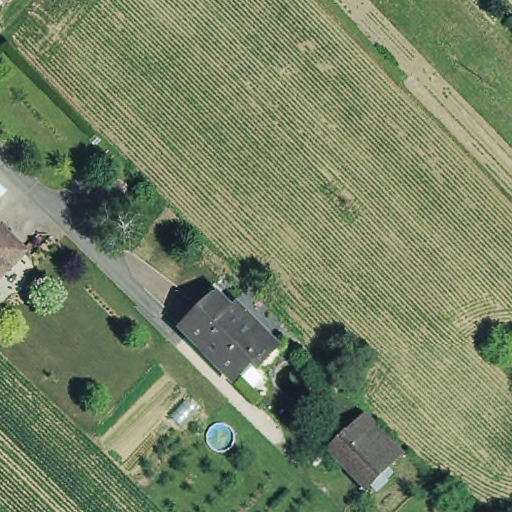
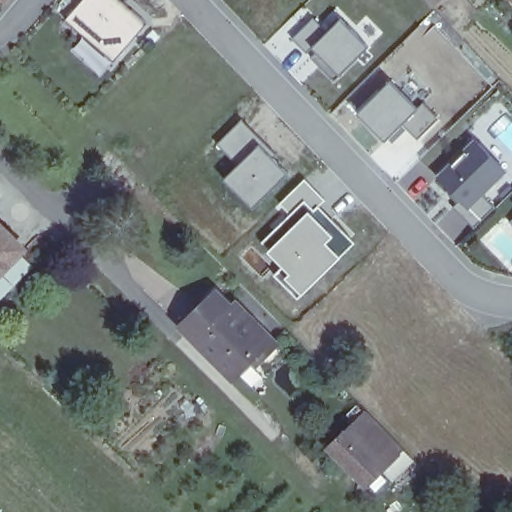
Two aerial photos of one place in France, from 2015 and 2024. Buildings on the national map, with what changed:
new [(67,20),(83,0),(122,0),(149,23),(115,62),(114,61),(85,36),(67,20)]
new [(370,48),(340,80),(309,54),(341,20),(370,48)]
new [(382,142),(355,116),(391,82),(415,110),(382,142)]
new [(269,156),(288,173),(250,210),(223,179),(237,164),(215,142),(242,120),(274,152),(269,156)]
new [(504,173),(472,209),(442,179),(477,146),(504,173)]
new [(324,200),(317,208),(353,242),(300,299),(276,276),(285,267),(264,240),(291,211),(280,200),(304,179),(324,200)]
unchanged [(0,260),(0,231),(15,245),(0,260)]
unchanged [(0,288),(0,260),(15,245),(29,259),(0,288)]
unchanged [(269,354),(264,349),(245,368),(194,316),(225,284),(242,301),(247,297),(260,309),(287,336),(269,354)]
unchanged [(400,456),(362,492),(324,452),(362,416),(400,456)]

